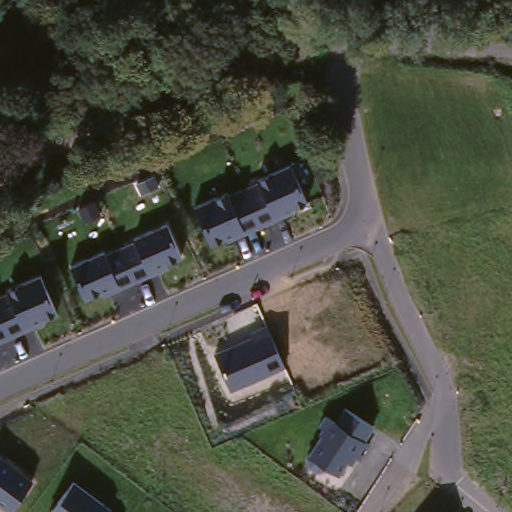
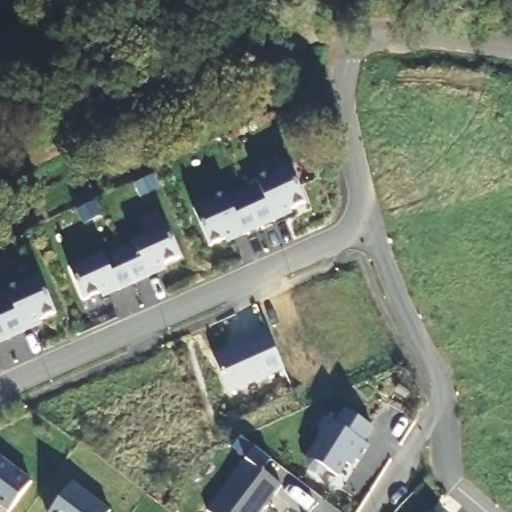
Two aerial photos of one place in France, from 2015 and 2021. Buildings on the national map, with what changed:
unchanged [(307,204),(210,245),(193,209),(289,164),(307,204)]
unchanged [(181,259),(87,302),(71,268),(166,225),(181,259)]
unchanged [(54,315),(0,339),(0,294),(39,277),(54,315)]
unchanged [(230,390),(214,355),(268,329),(284,366),(230,390)]
unchanged [(369,428),(336,476),(324,467),(319,473),(301,459),(321,433),(314,428),(322,416),(332,421),(339,409),(369,428)]
new [(273,458),(264,471),(282,482),(258,512),(211,512),(207,509),(254,446),(273,458)]
unchanged [(9,512),(0,506),(0,457),(33,480),(9,512)]
unchanged [(69,485),(106,512),(49,512),(69,485)]

